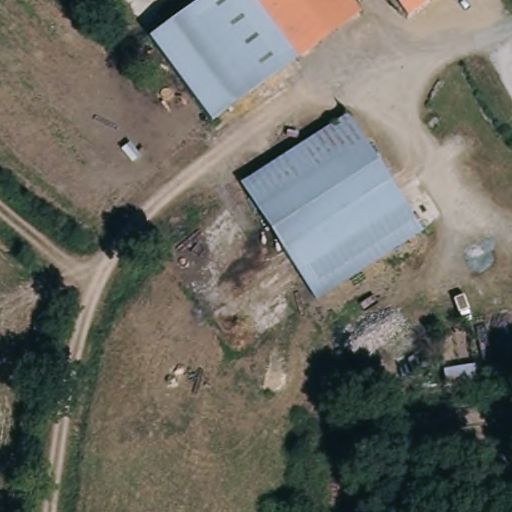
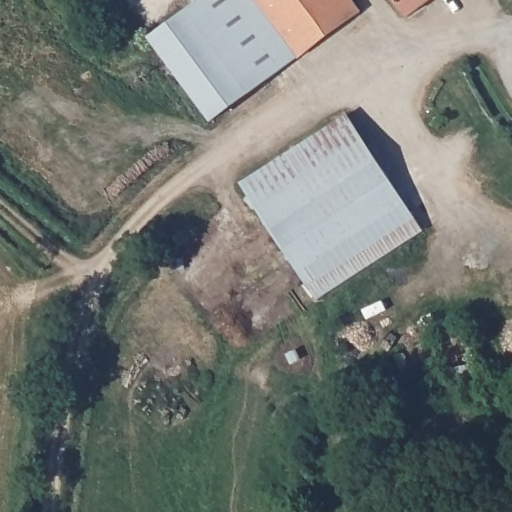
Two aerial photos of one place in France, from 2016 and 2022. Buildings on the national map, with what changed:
unchanged [(211,123),(148,37),(199,0),(233,0),(282,67),(211,123)]
unchanged [(282,67),(233,0),(348,0),(356,12),(282,67)]
unchanged [(430,0),(406,19),(391,0),(430,0)]
unchanged [(422,231),(316,300),(241,185),(347,116),(422,231)]
unchanged [(477,381),(446,386),(444,370),(475,365),(477,381)]

